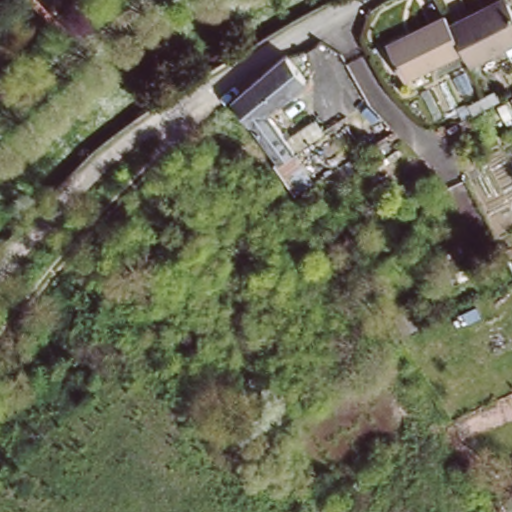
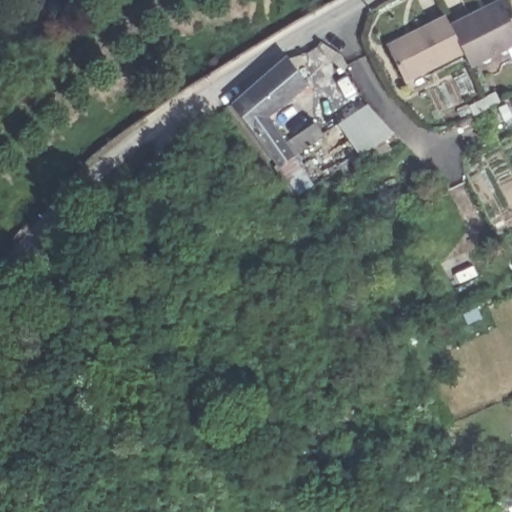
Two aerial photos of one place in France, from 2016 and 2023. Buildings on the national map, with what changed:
unchanged [(478,13),(500,0),(506,0),(508,3),(512,11),(512,45),(469,70),(462,56),(449,29),(478,13)]
unchanged [(385,54),(445,20),(449,29),(462,56),(404,87),(385,54)]
unchanged [(307,86),(265,118),(294,157),(279,169),(233,108),(229,103),(286,58),(307,86)]
unchanged [(508,101),(512,99),(512,109),(508,101)]

